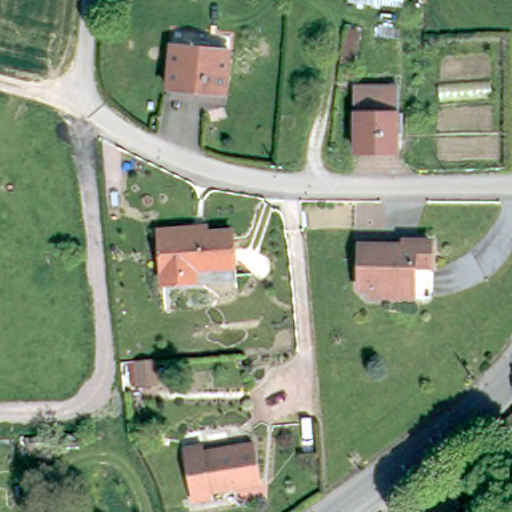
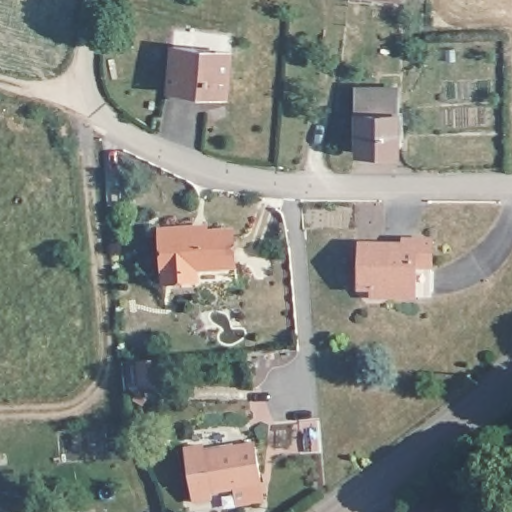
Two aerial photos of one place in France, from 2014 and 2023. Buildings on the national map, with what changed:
unchanged [(352,10),(353,1),(340,0),(408,0),(407,7),(406,15),(352,10)]
unchanged [(170,87),(167,87),(171,42),(227,49),(223,93),(221,92),(221,101),(168,95),(170,87)]
unchanged [(377,80),(347,77),(350,49),(380,52),(377,80)]
unchanged [(400,134),(400,157),(360,157),(360,89),(399,89),(400,115),(406,115),(405,134),(400,134)]
unchanged [(193,231),(243,229),(243,265),(195,267),(195,275),(171,275),(170,227),(193,226),(193,231)]
unchanged [(403,241),(430,241),(430,298),(371,297),(372,288),(359,288),(360,245),(403,246),(403,241)]
unchanged [(137,384),(135,360),(155,358),(157,382),(137,384)]
unchanged [(204,452),(252,442),(260,483),(211,493),(212,498),(193,502),(182,448),(202,444),(204,452)]

